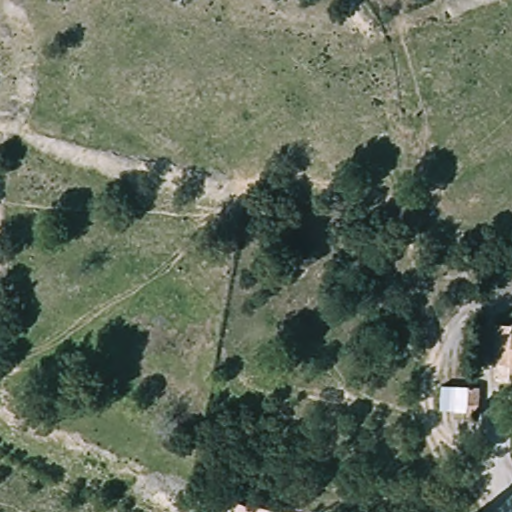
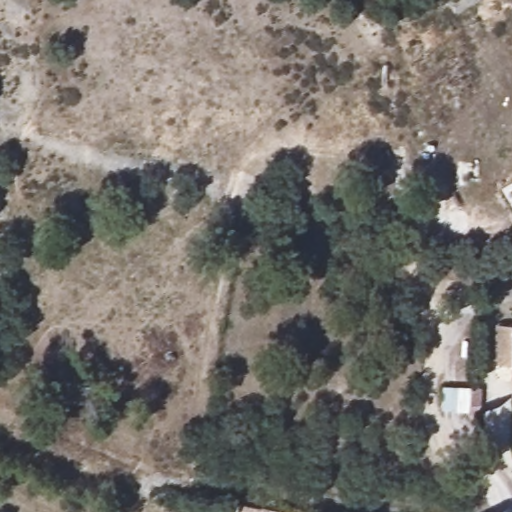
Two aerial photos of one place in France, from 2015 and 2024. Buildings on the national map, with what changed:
unchanged [(499,361),(498,325),(512,325),(512,361),(499,361)]
unchanged [(485,403),(472,403),(471,386),(486,386),(485,403)]
unchanged [(277,508),(276,512),(234,512),(237,503),(277,508)]

